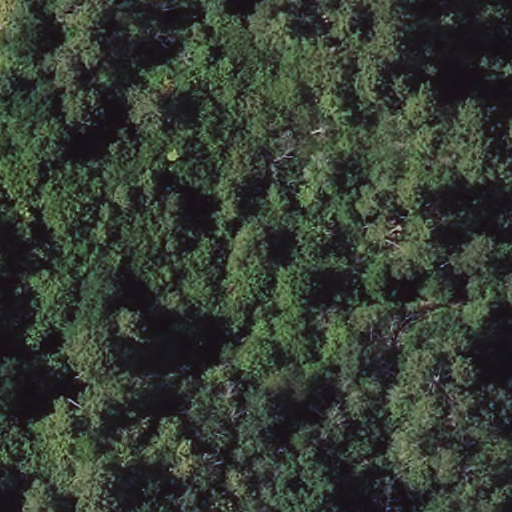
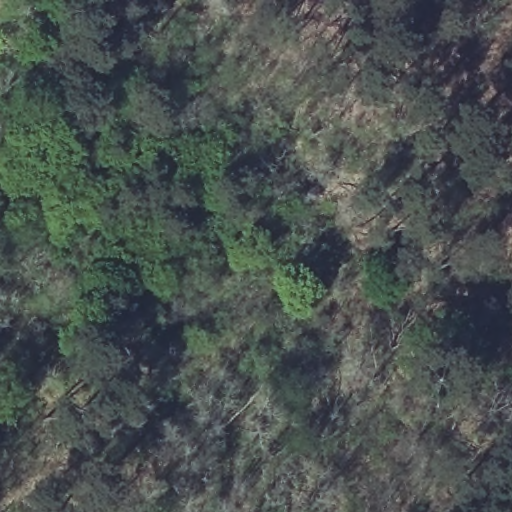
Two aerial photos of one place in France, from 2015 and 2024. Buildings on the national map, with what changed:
unchanged [(8,12),(2,50),(0,50),(0,10),(8,12)]

